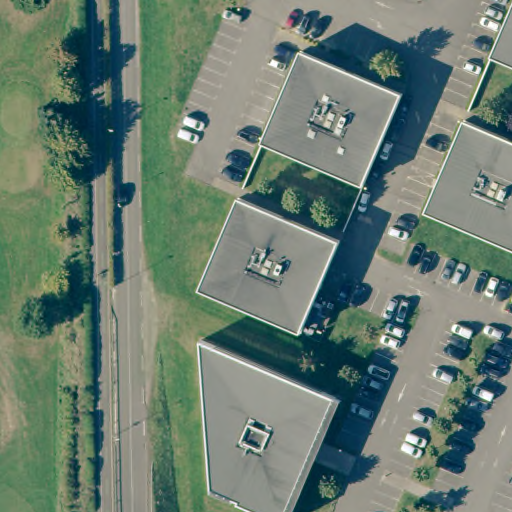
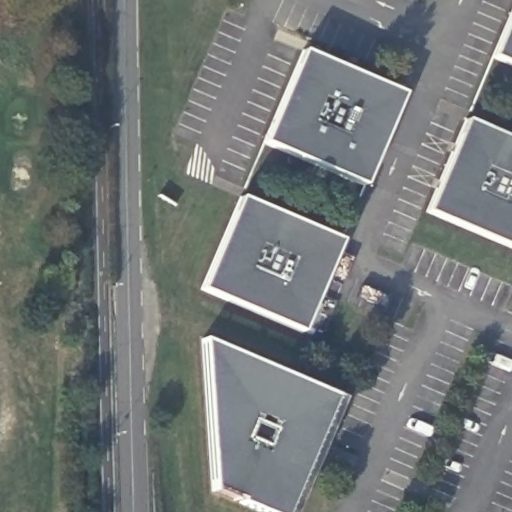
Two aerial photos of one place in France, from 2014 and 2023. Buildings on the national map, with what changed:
unchanged [(512,3),(512,69),(488,60),(512,3)]
unchanged [(299,54),(319,62),(398,93),(362,187),(263,147),(299,54)]
unchanged [(461,126),(512,147),(512,251),(425,216),(461,126)]
unchanged [(225,305),(201,296),(239,201),(342,245),(305,336),(225,305)]
unchanged [(261,512),(216,493),(205,342),(340,398),(292,512),(261,512)]

